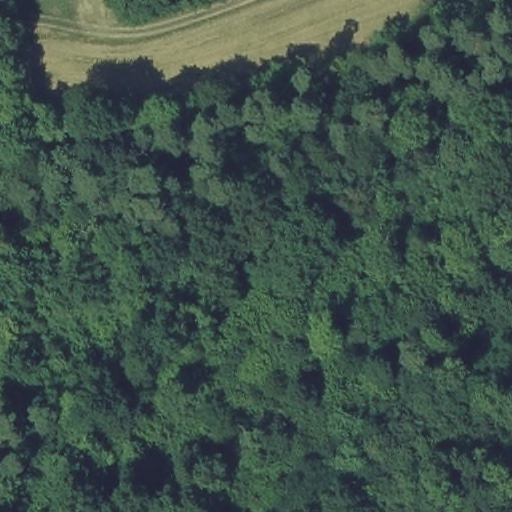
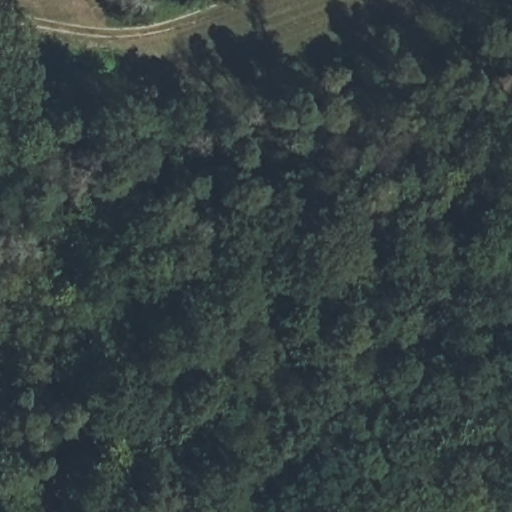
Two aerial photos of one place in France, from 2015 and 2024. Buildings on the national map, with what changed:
[]

